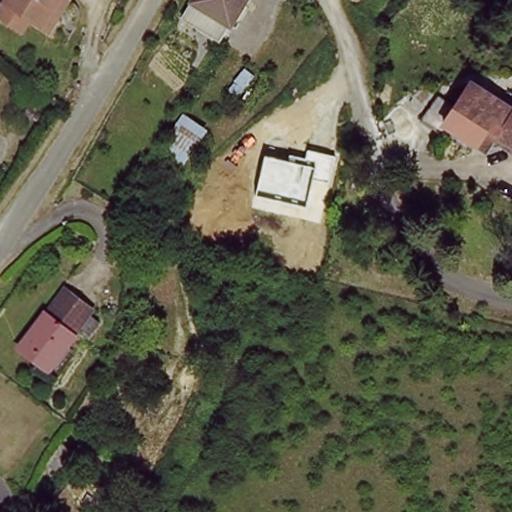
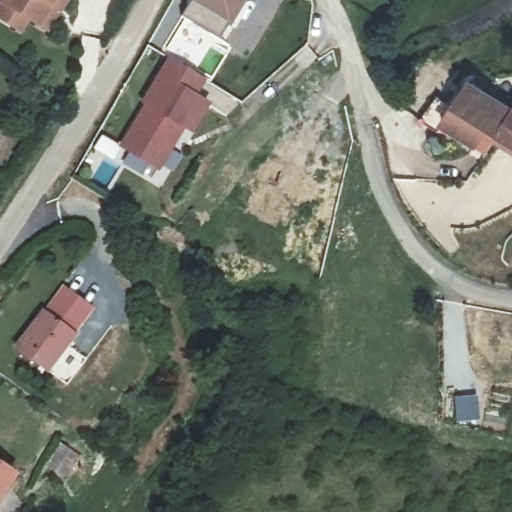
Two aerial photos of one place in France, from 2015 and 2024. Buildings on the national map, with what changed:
unchanged [(21,13),(27,0),(69,0),(56,30),(21,13)]
unchanged [(190,13),(198,0),(246,0),(224,32),(190,13)]
new [(192,136),(182,129),(158,171),(119,148),(144,106),(141,104),(158,76),(167,59),(206,82),(197,97),(211,104),(192,136)]
unchanged [(476,158),(437,130),(469,85),(512,116),(512,153),(490,136),(476,158)]
demolished [(182,112),(206,130),(192,151),(179,164),(158,148),(182,112)]
new [(328,184),(310,180),(304,209),(252,198),(262,153),(288,159),(289,156),(305,160),(307,151),(333,156),(328,184)]
unchanged [(18,356),(60,284),(92,303),(50,375),(18,356)]

